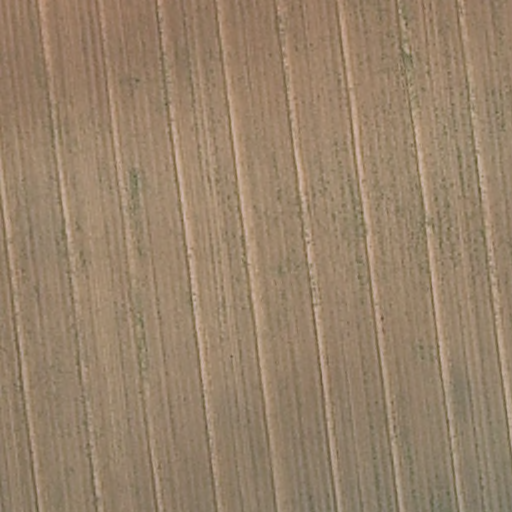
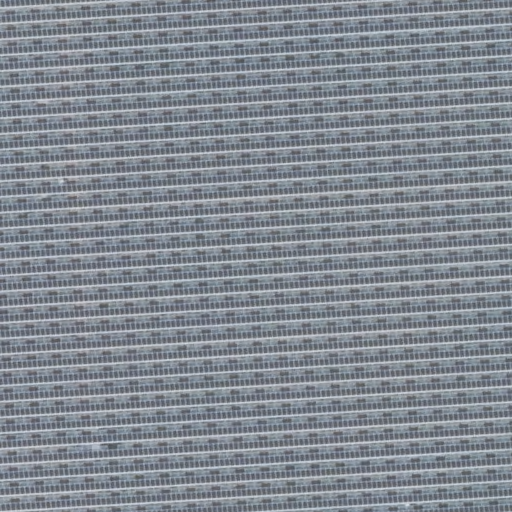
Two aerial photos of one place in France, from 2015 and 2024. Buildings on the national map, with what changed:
new [(512,512),(0,512),(0,0),(512,0),(512,512)]

